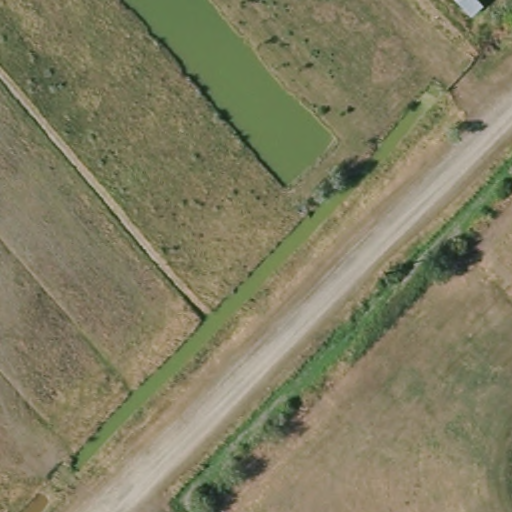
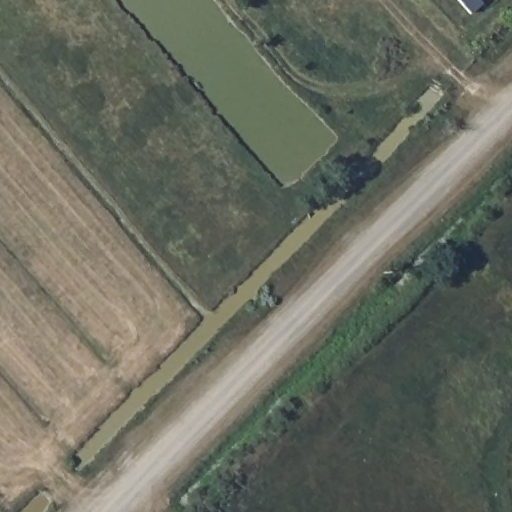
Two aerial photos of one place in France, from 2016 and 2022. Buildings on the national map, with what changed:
unchanged [(66,467),(55,454),(67,443),(79,455),(66,467)]

